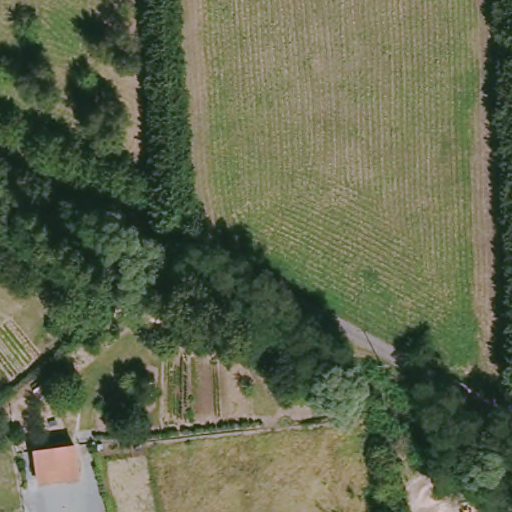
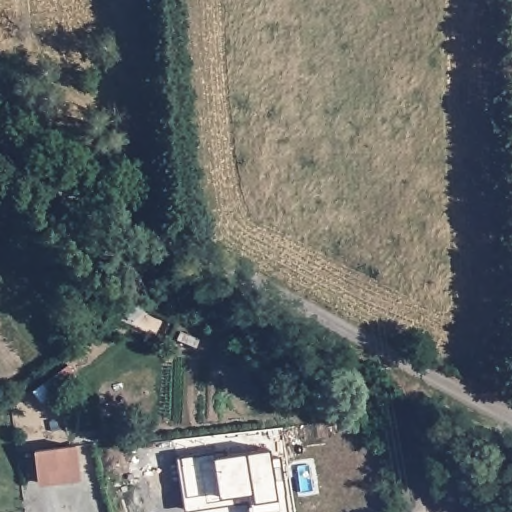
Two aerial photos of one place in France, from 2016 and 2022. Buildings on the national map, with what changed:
unchanged [(78,444),(83,476),(43,483),(37,451),(78,444)]
new [(289,512),(250,512),(249,504),(185,512),(177,456),(225,450),(226,458),(268,452),(268,459),(280,456),(289,512)]

